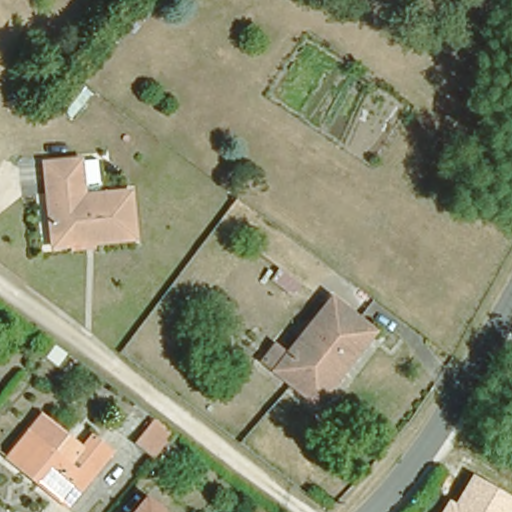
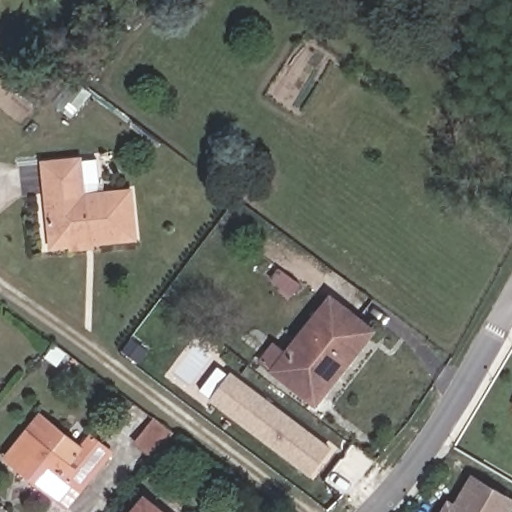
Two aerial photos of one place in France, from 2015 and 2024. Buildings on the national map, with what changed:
unchanged [(75,88),(62,79),(55,71),(71,52),(79,58),(91,68),(75,88)]
unchanged [(51,244),(41,166),(76,163),(80,199),(128,193),(134,240),(91,245),(51,250),(51,244)]
unchanged [(288,380),(259,358),(270,342),(285,353),(327,294),(368,325),(321,391),(313,400),(288,380)]
new [(234,375),(332,449),(313,476),(214,402),(234,375)]
unchanged [(80,440),(87,428),(107,444),(61,503),(0,452),(0,447),(37,407),(80,440)]
unchanged [(172,431),(154,457),(135,444),(154,417),(172,431)]
unchanged [(447,500),(453,503),(471,474),(512,496),(512,512),(440,512),(447,500)]
unchanged [(155,512),(138,512),(145,504),(155,512)]

